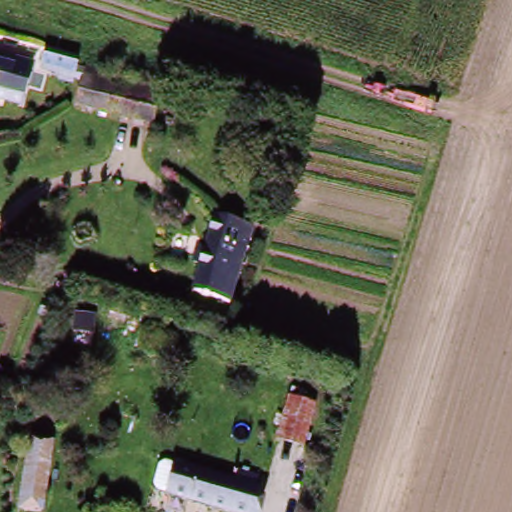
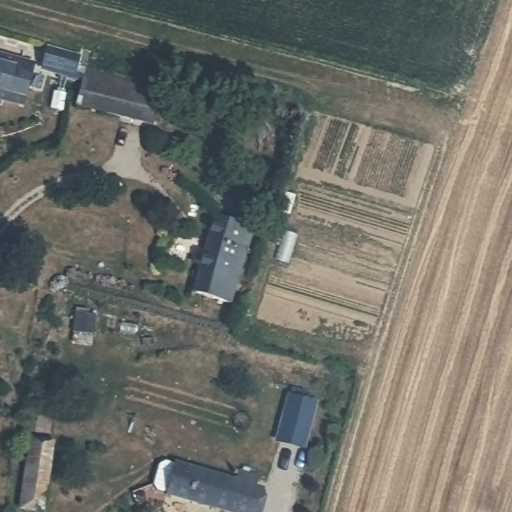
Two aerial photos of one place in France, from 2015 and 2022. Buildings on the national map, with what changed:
unchanged [(29,110),(0,105),(0,63),(39,74),(29,110)]
unchanged [(167,118),(147,114),(79,102),(84,77),(151,89),(172,93),(167,118)]
unchanged [(246,244),(232,302),(194,294),(207,235),(246,244)]
unchanged [(284,438),(298,393),(319,399),(306,444),(284,438)]
unchanged [(16,491),(26,458),(33,437),(55,444),(35,512),(10,512),(16,491)]
unchanged [(178,469),(262,494),(256,512),(222,512),(170,497),(178,469)]

